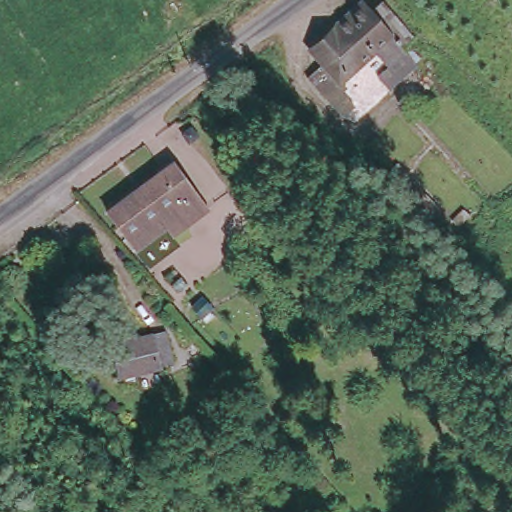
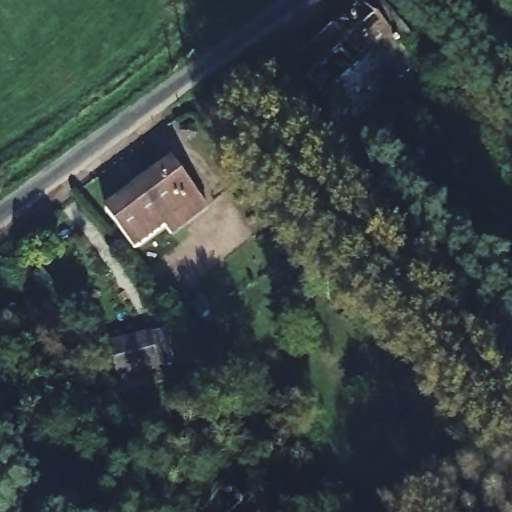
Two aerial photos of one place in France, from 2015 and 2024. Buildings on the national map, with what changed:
unchanged [(418,37),(405,48),(422,65),(396,91),(383,77),(393,68),(379,52),(345,83),(337,90),(343,96),(355,109),(345,119),(310,82),(326,66),(314,51),(362,5),(369,12),(381,3),(403,27),(406,24),(418,37)]
unchanged [(168,161),(208,205),(177,235),(170,229),(143,252),(108,213),(168,161)]
unchanged [(162,331),(175,363),(124,386),(111,355),(162,331)]

